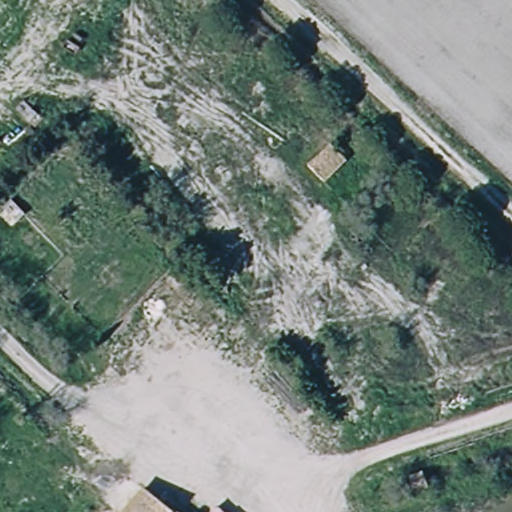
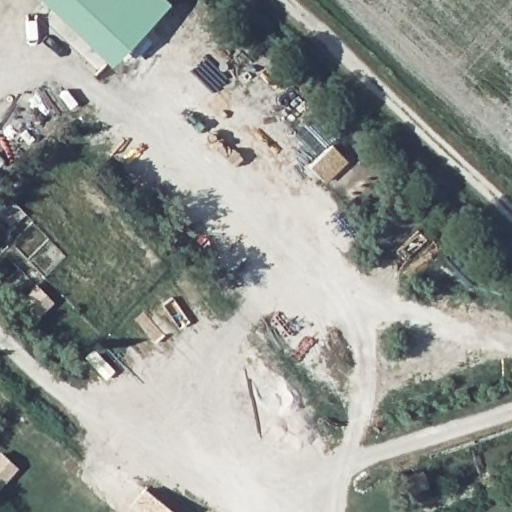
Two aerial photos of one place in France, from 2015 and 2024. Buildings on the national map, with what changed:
new [(165,1),(107,62),(40,0),(164,0),(165,1)]
unchanged [(330,143),(346,160),(324,181),(309,165),(330,143)]
unchanged [(152,512),(119,512),(130,496),(152,512)]

